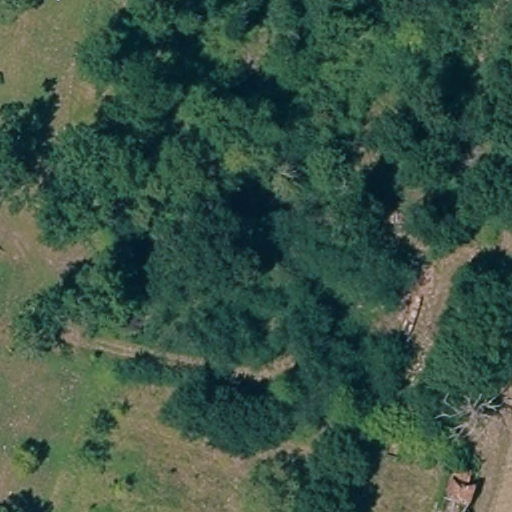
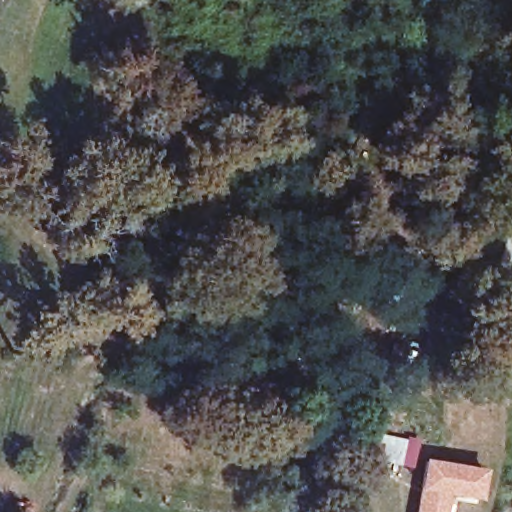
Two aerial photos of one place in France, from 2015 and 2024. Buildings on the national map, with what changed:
new [(427,462),(482,472),(477,504),(457,501),(456,512),(418,512),(427,462)]
demolished [(471,497),(467,512),(439,512),(446,490),(471,497)]

